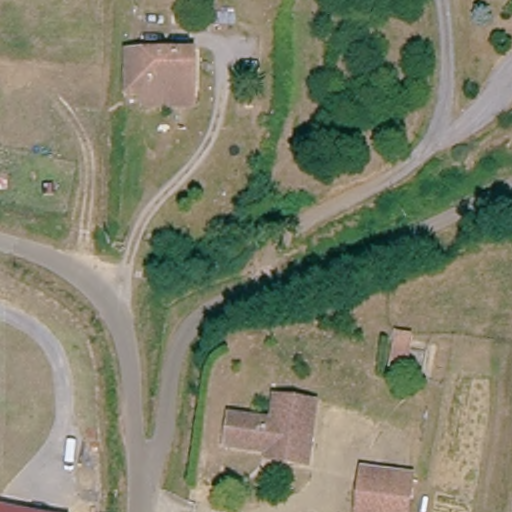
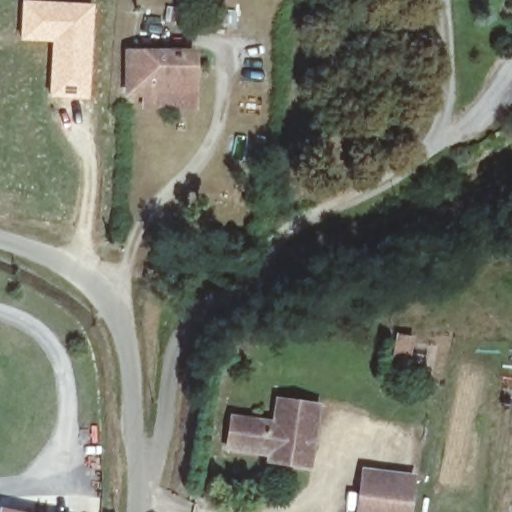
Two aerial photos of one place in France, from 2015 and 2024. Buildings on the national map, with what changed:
new [(40,0),(94,3),(89,98),(48,95),(50,42),(19,40),(21,0),(40,0)]
unchanged [(151,100),(151,89),(133,89),(132,86),(133,46),(195,47),(195,89),(195,100),(151,100)]
unchanged [(154,253),(146,252),(147,243),(154,243),(154,253)]
unchanged [(405,380),(387,377),(396,334),(413,337),(405,380)]
unchanged [(267,451),(225,444),(227,434),(230,414),(273,420),(276,402),(317,407),(307,467),(287,464),(265,461),(267,451)]
unchanged [(412,512),(362,512),(364,489),(367,475),(398,479),(416,482),(412,512)]
unchanged [(0,509),(17,512),(0,512),(0,509)]

